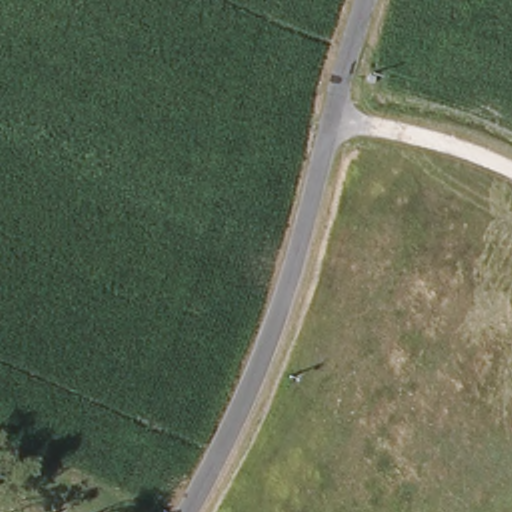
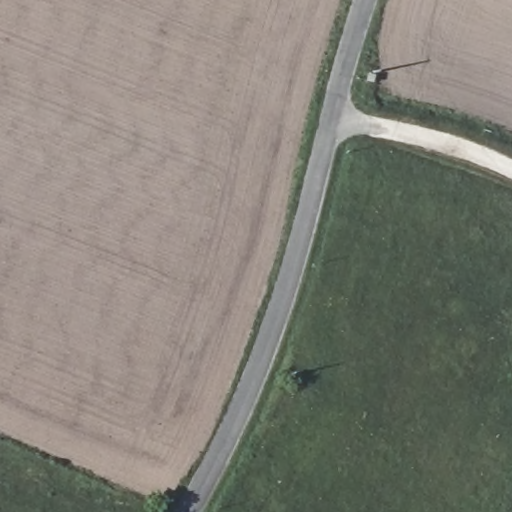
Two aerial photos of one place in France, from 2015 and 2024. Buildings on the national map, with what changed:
[]

